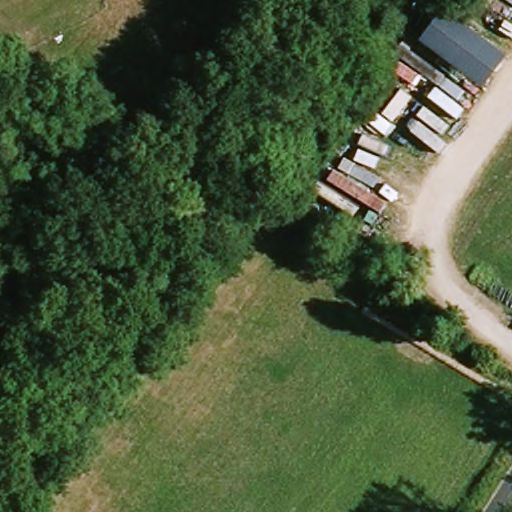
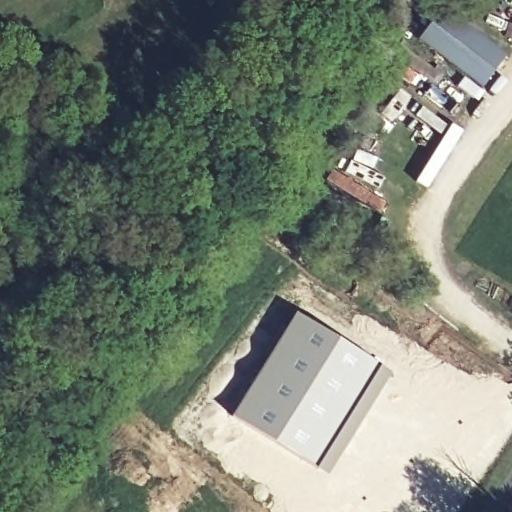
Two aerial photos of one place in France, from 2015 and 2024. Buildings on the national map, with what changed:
unchanged [(482,89),(421,41),(446,6),(508,55),(482,89)]
new [(297,311),(360,349),(393,373),(328,477),(232,416),(297,311)]

